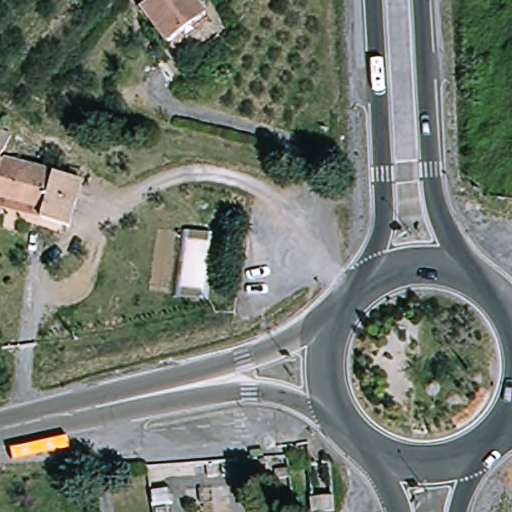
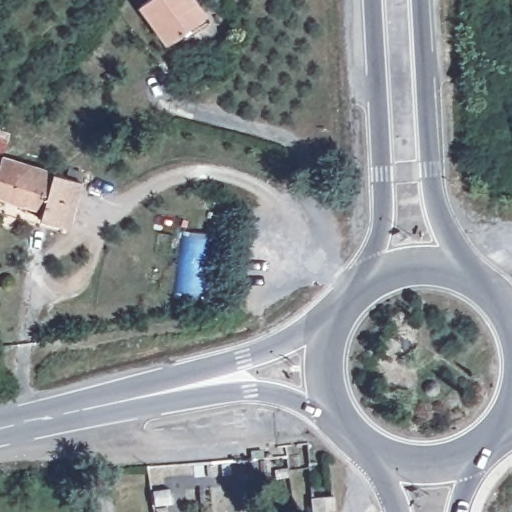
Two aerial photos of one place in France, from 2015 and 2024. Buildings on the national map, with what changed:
unchanged [(165,39),(140,4),(146,0),(195,0),(203,11),(207,17),(169,45),(165,39)]
unchanged [(7,151),(1,160),(0,160),(0,145),(7,151)]
unchanged [(48,208),(0,198),(0,180),(3,162),(85,175),(77,231),(46,227),(48,208)]
unchanged [(214,233),(206,301),(179,298),(187,231),(214,233)]
unchanged [(278,474),(280,465),(299,463),(299,479),(278,481),(278,474)]
unchanged [(308,465),(334,464),(337,509),(322,512),(313,512),(308,465)]

